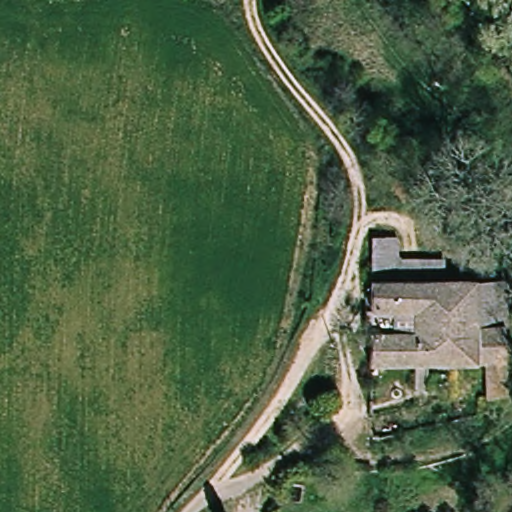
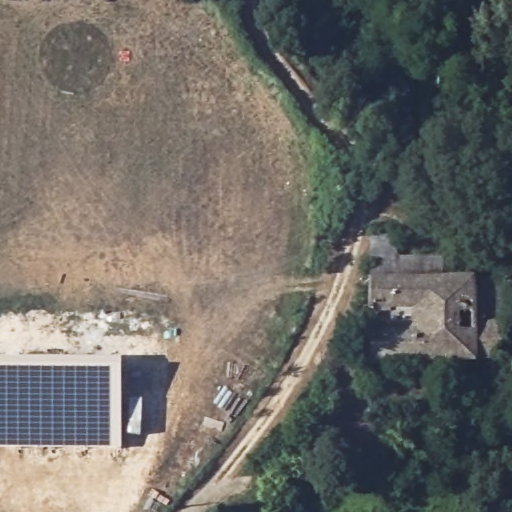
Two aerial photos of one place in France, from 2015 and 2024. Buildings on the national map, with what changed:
unchanged [(404,235),(404,259),(449,258),(449,283),(377,287),(376,235),(404,235)]
unchanged [(377,287),(449,283),(482,282),(485,328),(507,328),(509,402),(484,400),(482,358),(423,361),(409,362),(365,364),(369,334),(389,333),(388,323),(371,321),(377,287)]
new [(0,360),(122,361),(121,400),(142,401),(140,436),(121,435),(121,450),(0,450),(0,360)]

